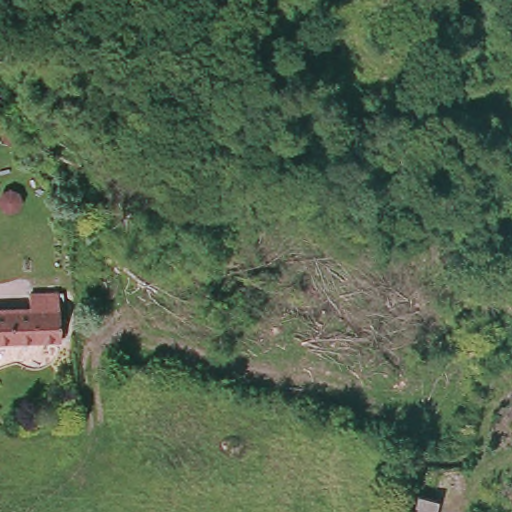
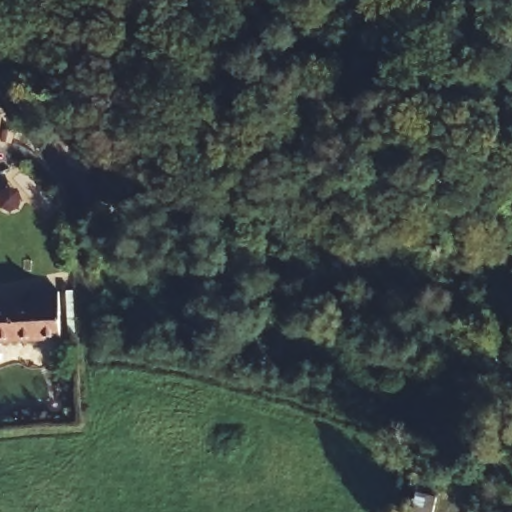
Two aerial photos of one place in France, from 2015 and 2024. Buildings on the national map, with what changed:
unchanged [(34,294),(52,293),(55,328),(0,338),(0,308),(34,303),(34,294)]
unchanged [(431,491),(427,512),(410,512),(415,488),(431,491)]

